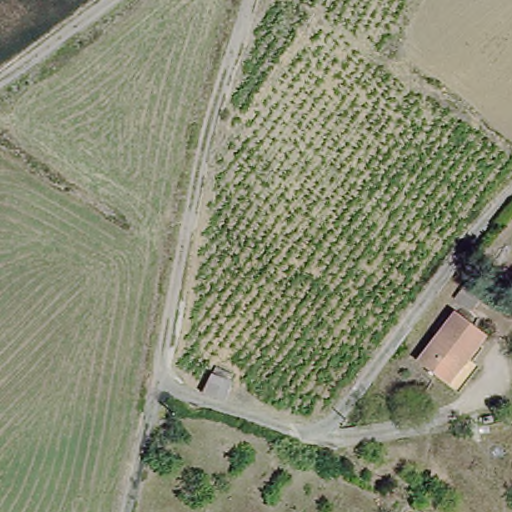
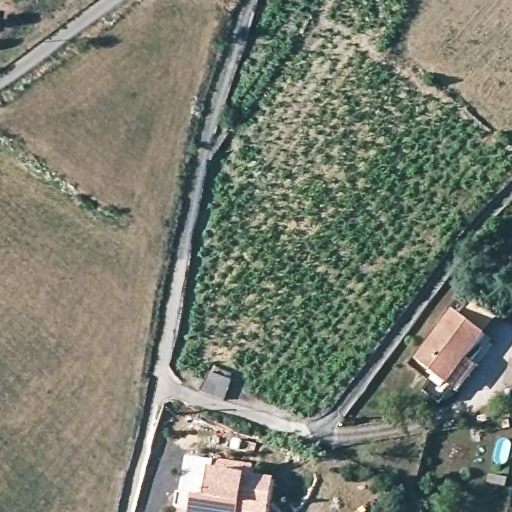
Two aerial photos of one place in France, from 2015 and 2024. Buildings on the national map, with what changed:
unchanged [(417,355),(460,310),(490,339),(445,384),(417,355)]
unchanged [(239,365),(234,389),(208,383),(217,357),(239,365)]
new [(191,493),(206,497),(215,459),(255,466),(254,472),(276,477),(270,512),(188,512),(188,509),(191,493)]

